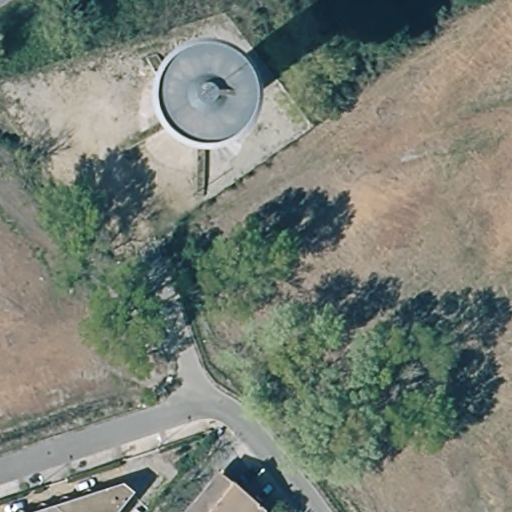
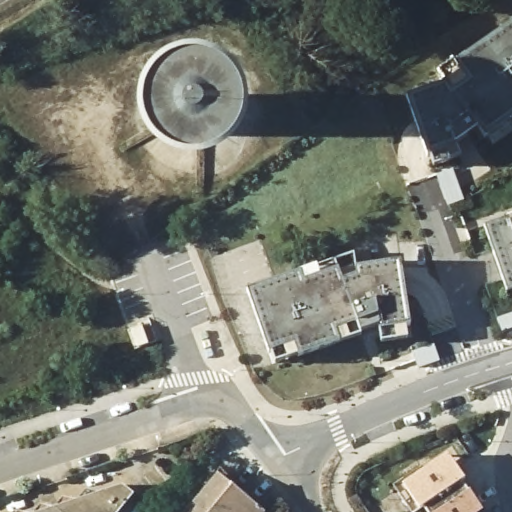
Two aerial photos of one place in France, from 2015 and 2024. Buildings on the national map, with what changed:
new [(508,121),(512,127),(512,131),(491,145),(485,138),(477,130),(455,144),(454,148),(459,159),(433,168),(428,156),(408,97),(447,84),(438,72),(455,60),(458,63),(512,25),(512,119),(508,121)]
new [(505,292),(486,227),(508,218),(508,222),(512,221),(512,289),(505,292)]
new [(378,324),(360,332),(362,339),(340,343),(298,357),(268,353),(249,291),(300,273),(317,267),(335,260),(353,254),(356,269),(401,264),(407,327),(409,343),(382,345),(378,330),(378,324)]
new [(140,327),(146,344),(136,348),(130,330),(140,327)]
new [(423,509),(420,511),(401,486),(448,454),(467,479),(464,482),(472,492),(483,512),(425,512),(423,509)]
unchanged [(221,472),(265,509),(262,512),(188,512),(221,472)]
unchanged [(121,512),(47,512),(124,487),(134,496),(121,512)]

